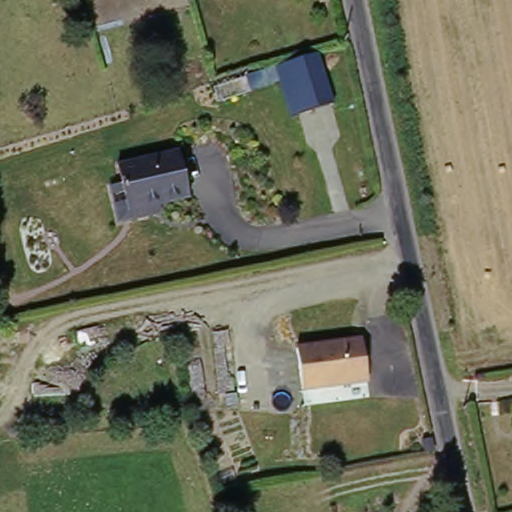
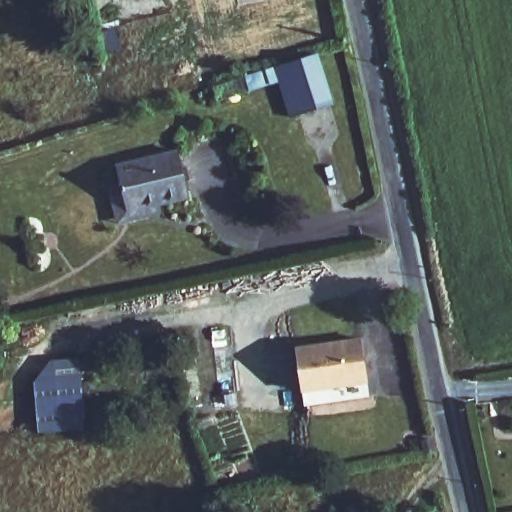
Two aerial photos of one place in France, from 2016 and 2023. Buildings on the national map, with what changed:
unchanged [(278,65),(323,53),(336,104),(295,119),(278,65)]
unchanged [(121,213),(119,204),(113,172),(127,167),(124,155),(188,142),(199,186),(167,193),(169,203),(121,213)]
unchanged [(361,379),(303,387),(298,349),(357,340),(361,379)]
new [(80,377),(85,427),(40,432),(35,382),(80,377)]

